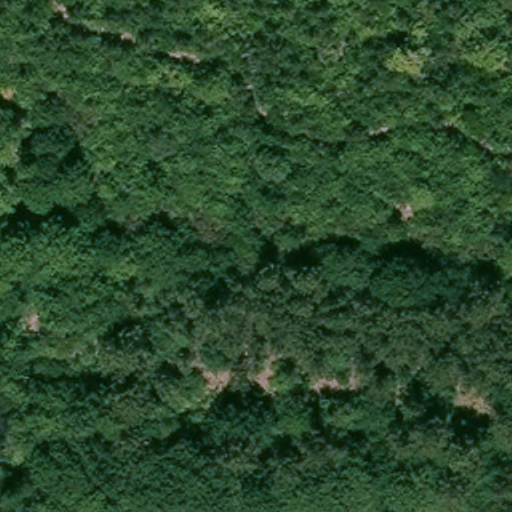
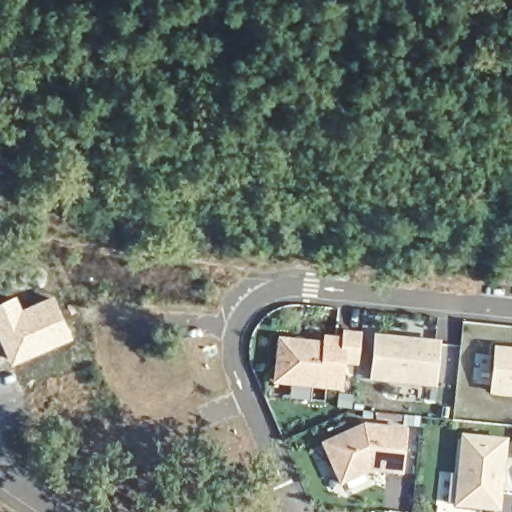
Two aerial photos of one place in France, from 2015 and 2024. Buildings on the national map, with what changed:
new [(11,365),(0,340),(0,303),(17,295),(22,308),(55,294),(74,338),(11,365)]
new [(273,385),(280,337),(323,342),(324,335),(342,337),(343,331),(361,332),(359,365),(343,365),(342,391),(273,385)]
new [(370,381),(375,335),(441,340),(437,388),(370,381)]
new [(495,346),(512,348),(512,396),(490,394),(495,346)]
new [(322,441),(364,425),(408,427),(403,475),(371,471),(341,485),(322,441)]
new [(455,505),(462,435),(508,438),(501,510),(455,505)]

